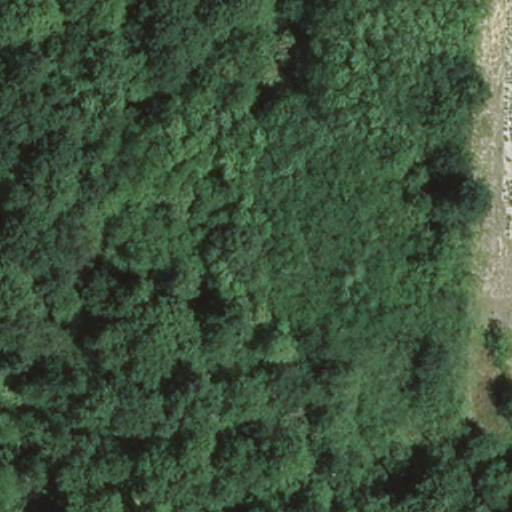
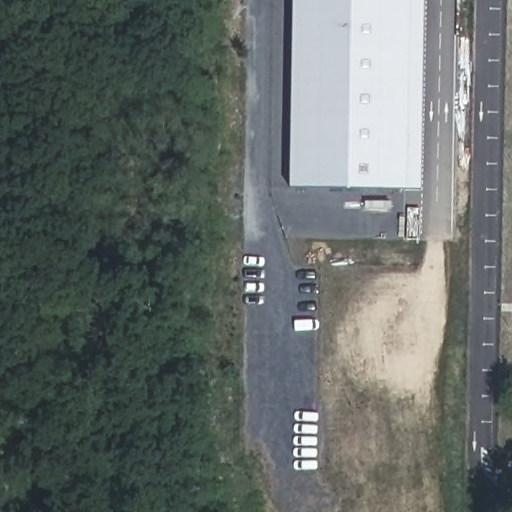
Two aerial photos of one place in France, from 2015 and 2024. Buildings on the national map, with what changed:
new [(292,189),(293,0),(426,0),(422,189),(292,189)]

